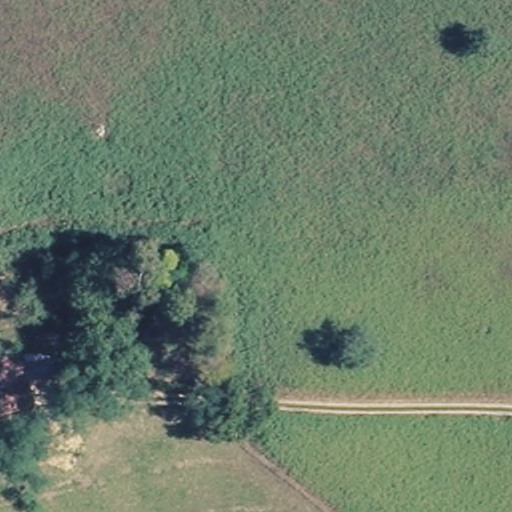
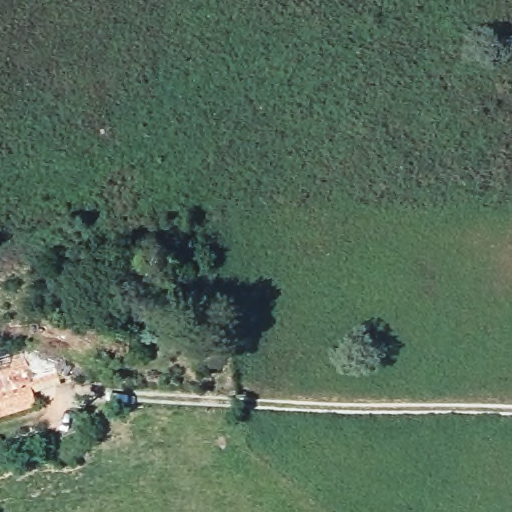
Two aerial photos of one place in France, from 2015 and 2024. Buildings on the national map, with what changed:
unchanged [(0,364),(25,357),(29,369),(0,378),(0,364)]
unchanged [(0,416),(0,391),(35,380),(42,402),(0,416)]

